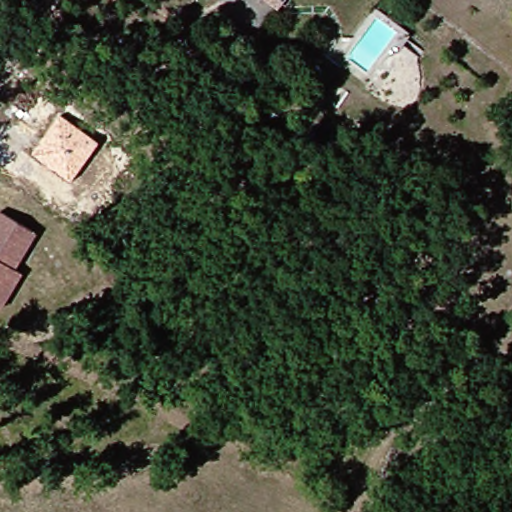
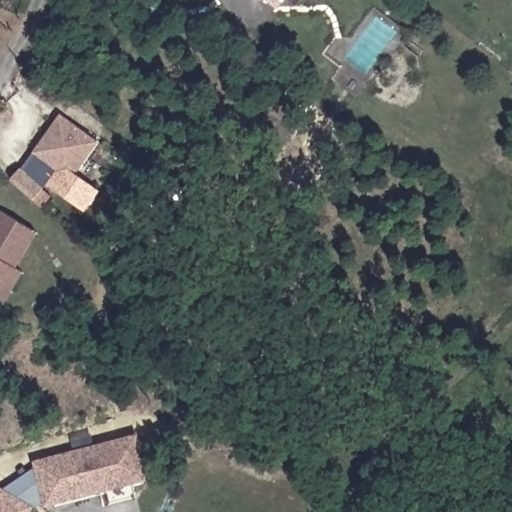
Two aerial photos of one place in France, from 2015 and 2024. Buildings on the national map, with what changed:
unchanged [(275,10),(271,6),(263,0),(283,0),(275,10)]
unchanged [(72,180),(35,153),(62,115),(99,141),(72,180)]
unchanged [(0,307),(0,214),(34,232),(14,269),(21,273),(10,295),(2,308),(0,307)]
new [(34,469),(31,460),(140,432),(153,480),(45,508),(45,505),(35,507),(33,512),(0,512),(0,487),(3,488),(34,469)]

